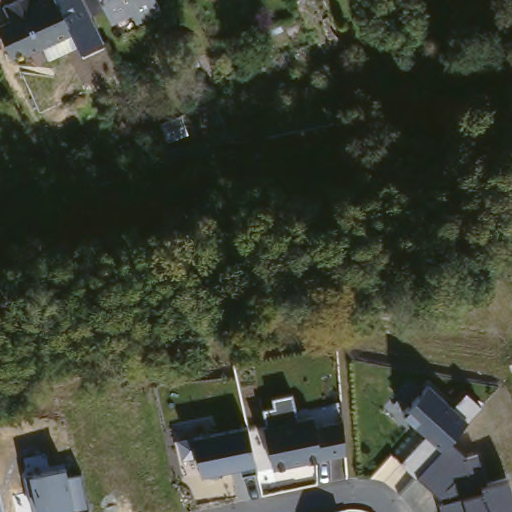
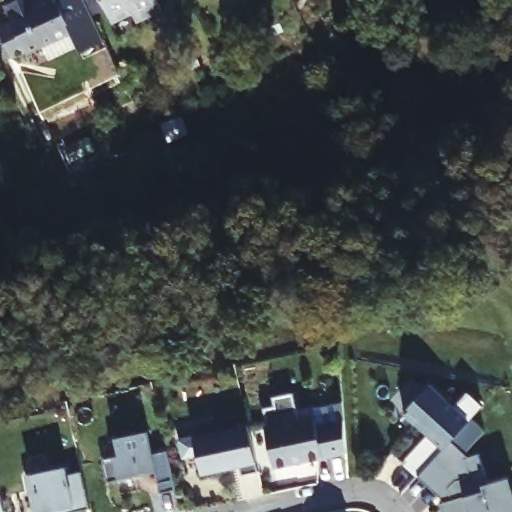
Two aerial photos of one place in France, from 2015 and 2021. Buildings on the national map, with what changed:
unchanged [(84,0),(90,10),(103,41),(81,52),(72,32),(59,39),(27,53),(26,50),(11,57),(0,32),(0,26),(11,20),(5,5),(16,0),(35,0),(36,3),(41,0),(42,0),(84,0)]
unchanged [(153,9),(135,19),(130,9),(110,19),(105,8),(91,14),(84,0),(158,0),(161,5),(165,14),(156,19),(153,9)]
unchanged [(231,56),(222,60),(217,48),(226,45),(231,56)]
unchanged [(430,384),(453,404),(466,392),(481,406),(468,420),(452,438),(466,457),(479,452),(488,483),(508,477),(512,490),(512,512),(443,512),(440,501),(440,499),(401,461),(426,434),(404,414),(430,384)]
unchanged [(265,429),(263,409),(275,407),(273,398),(295,394),(301,419),(314,417),(316,426),(344,419),(347,452),(274,467),(265,429)]
unchanged [(197,454),(183,457),(178,439),(247,424),(257,471),(244,474),(242,466),(202,476),(197,454)]
new [(160,492),(158,483),(155,472),(139,476),(107,482),(102,460),(120,456),(115,435),(131,432),(132,435),(147,432),(148,435),(152,454),(167,451),(173,480),(175,489),(160,492)]
unchanged [(30,473),(66,464),(68,472),(81,471),(91,503),(76,506),(47,512),(39,512),(30,473)]
unchanged [(0,492),(4,512),(0,512),(0,492)]

